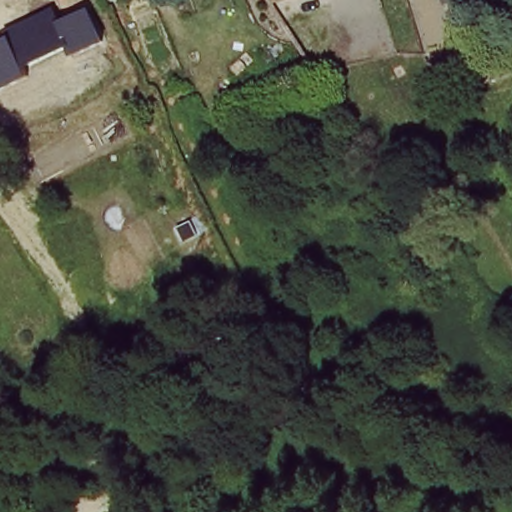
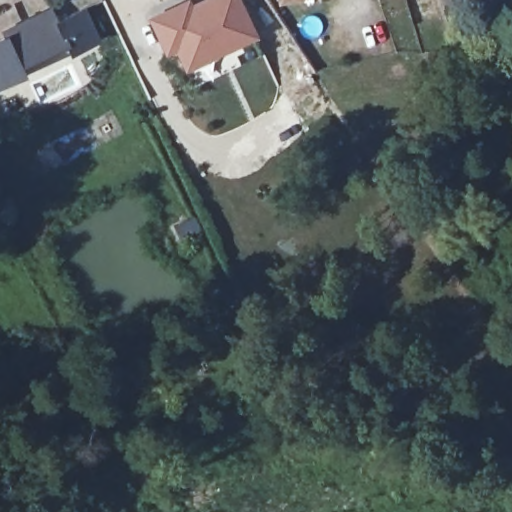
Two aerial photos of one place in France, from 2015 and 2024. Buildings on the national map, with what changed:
new [(183,73),(173,52),(164,57),(146,18),(185,0),(190,0),(192,4),(200,0),(238,0),(258,40),(183,73)]
unchanged [(443,0),(459,0),(444,5),(443,0)]
unchanged [(3,27),(48,5),(56,22),(85,7),(100,40),(70,56),(65,48),(23,69),(26,77),(0,89),(0,39),(6,35),(3,27)]
unchanged [(511,44),(512,52),(512,67),(491,70),(487,48),(511,44)]

